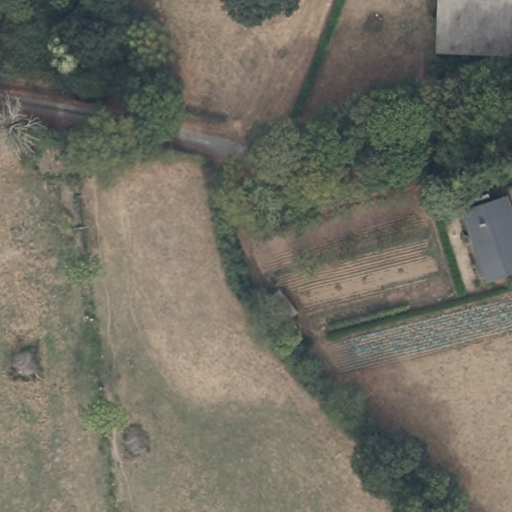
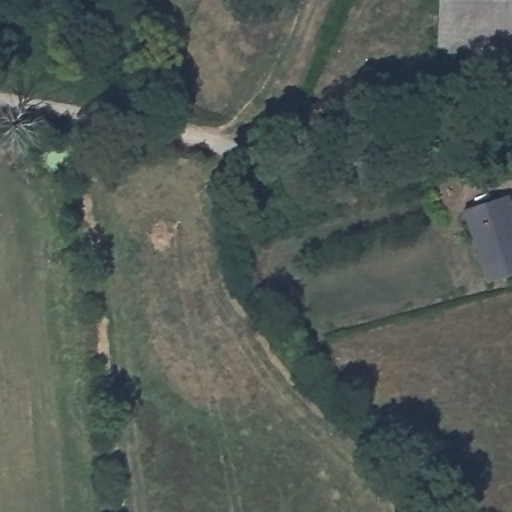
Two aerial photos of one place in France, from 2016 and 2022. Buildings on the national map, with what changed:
unchanged [(440,0),(512,3),(512,54),(437,51),(440,0)]
unchanged [(512,3),(440,0),(512,0),(512,3)]
unchanged [(468,207),(512,196),(512,277),(486,283),(468,207)]

